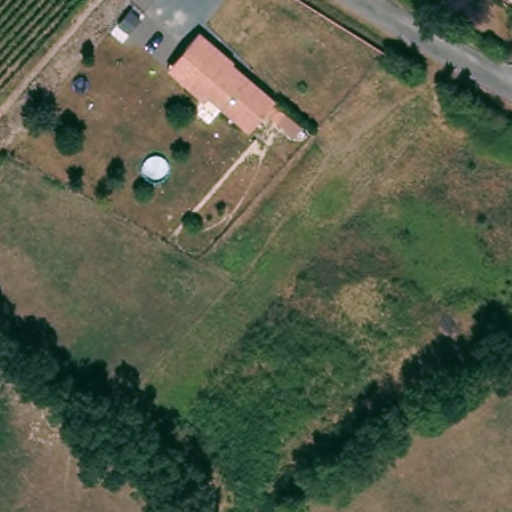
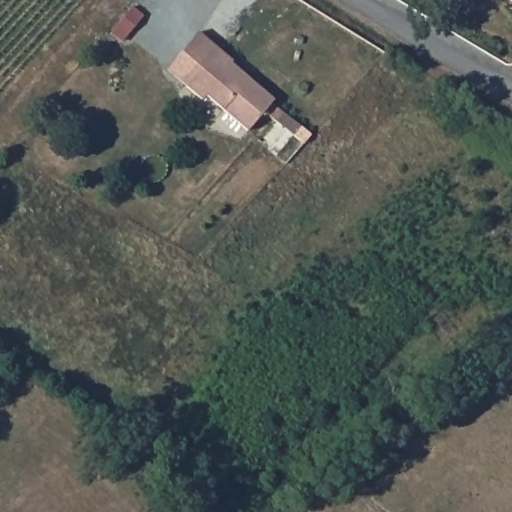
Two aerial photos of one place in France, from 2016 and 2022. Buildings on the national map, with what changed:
unchanged [(230,66),(245,79),(247,76),(276,101),(249,131),(207,95),(202,100),(185,85),(204,64),(185,47),(199,31),(233,61),(230,66)]

